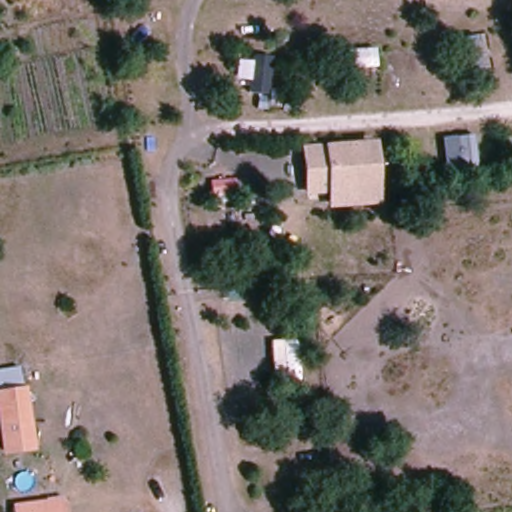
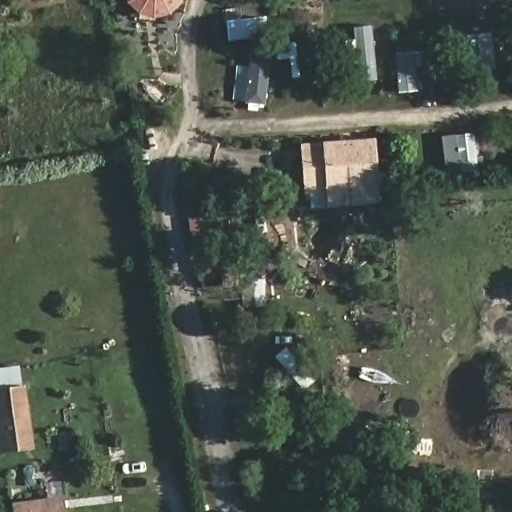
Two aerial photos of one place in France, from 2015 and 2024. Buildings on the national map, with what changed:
new [(128,0),(184,0),(182,4),(170,15),(155,20),(140,14),(129,3),(128,0)]
unchanged [(380,205),(327,206),(326,195),(303,197),(298,146),(325,144),(351,141),(353,131),(372,129),(376,140),(380,205)]
unchanged [(3,440),(0,396),(0,389),(21,386),(25,438),(3,440)]
unchanged [(67,504),(68,512),(12,512),(13,502),(67,504)]

